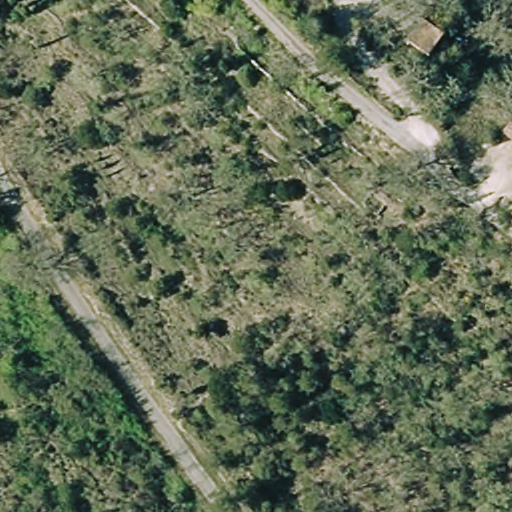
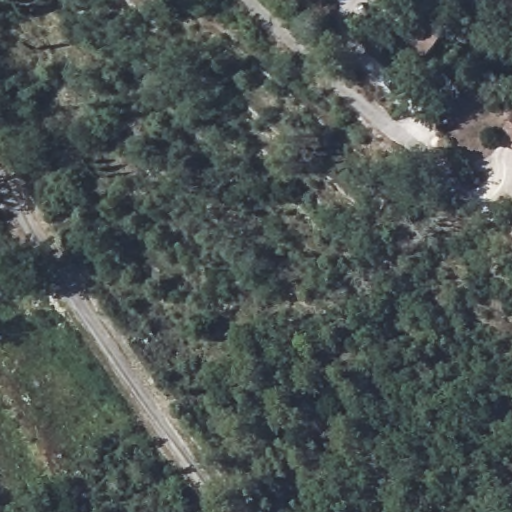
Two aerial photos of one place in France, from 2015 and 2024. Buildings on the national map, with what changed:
unchanged [(403,42),(416,17),(443,33),(429,58),(403,42)]

